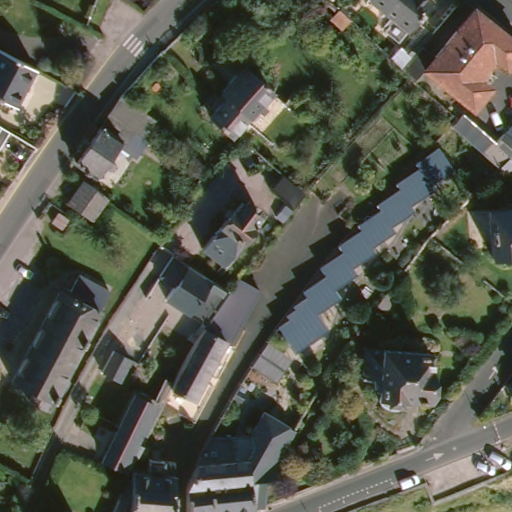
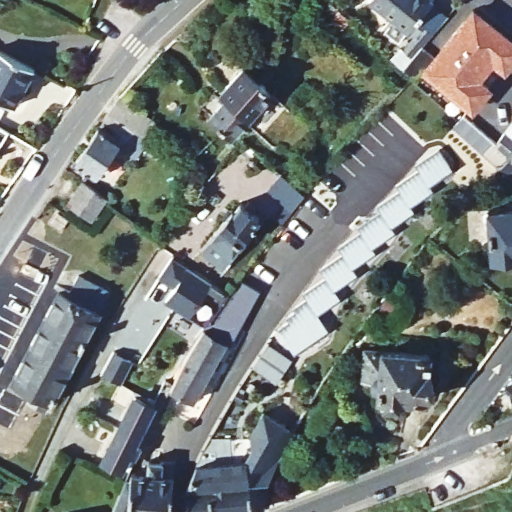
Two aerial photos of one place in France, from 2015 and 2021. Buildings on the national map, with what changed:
unchanged [(407,33),(369,2),(370,0),(429,0),(431,2),(407,33)]
unchanged [(487,79),(499,89),(482,110),(435,72),(427,83),(423,80),(418,75),(427,63),(418,57),(435,32),(444,38),(436,52),(445,59),(483,11),(512,34),(512,68),(502,61),(487,79)]
unchanged [(350,22),(341,31),(330,21),(339,12),(350,22)]
unchanged [(34,69),(14,107),(0,99),(0,51),(7,55),(34,69)]
unchanged [(279,105),(253,132),(240,119),(226,134),(205,114),(223,93),(216,87),(219,85),(236,65),(265,92),(279,105)]
unchanged [(130,164),(115,153),(118,149),(113,145),(88,181),(68,168),(103,119),(112,104),(147,128),(137,143),(142,147),(130,164)]
unchanged [(512,166),(511,167),(508,170),(491,153),(463,129),(469,121),(475,116),(503,140),(506,142),(512,136),(512,166)]
unchanged [(4,124),(10,128),(0,145),(0,121),(4,124)]
unchanged [(428,183),(405,198),(409,204),(386,219),(389,225),(366,240),(372,249),(346,266),(350,272),(327,286),(332,294),(308,310),(317,326),(283,348),(271,329),(305,306),(297,292),(321,276),(316,267),(338,253),(334,246),(359,230),(355,223),(378,208),(375,202),(399,186),(396,181),(418,167),(428,183)]
unchanged [(303,193),(304,196),(290,210),(289,209),(268,190),(281,175),(303,193)]
unchanged [(101,203),(85,225),(62,209),(78,186),(101,203)]
unchanged [(501,263),(498,262),(495,260),(494,256),(490,256),(487,211),(504,209),(505,204),(512,204),(512,259),(508,262),(501,263)]
unchanged [(241,221),(248,227),(241,235),(244,238),(222,265),(207,253),(215,243),(207,238),(221,220),(223,221),(229,213),(235,217),(238,212),(245,217),(241,221)]
unchanged [(180,289),(162,318),(141,305),(160,275),(180,289)]
unchanged [(253,293),(233,330),(207,315),(221,293),(226,288),(232,280),(253,293)]
unchanged [(107,302),(49,413),(33,405),(38,394),(15,382),(62,291),(72,295),(77,286),(107,302)]
unchanged [(393,303),(384,315),(373,307),(382,295),(393,303)]
unchanged [(180,357),(191,339),(207,315),(233,330),(223,346),(224,348),(207,379),(201,375),(187,402),(163,390),(166,383),(180,357)]
unchanged [(438,348),(437,393),(416,392),(414,398),(412,402),(408,404),(403,405),(397,405),(392,403),(389,399),(389,387),(389,376),(373,375),(373,345),(438,348)]
unchanged [(117,467),(115,469),(97,460),(128,398),(139,403),(142,397),(149,401),(159,380),(166,383),(163,390),(123,470),(117,467)]
unchanged [(512,388),(512,412),(503,392),(512,388)]
unchanged [(242,459),(250,512),(185,512),(190,465),(242,459)]
unchanged [(167,467),(164,512),(105,512),(110,501),(119,479),(125,479),(126,472),(143,473),(144,461),(155,461),(155,466),(167,467)]

